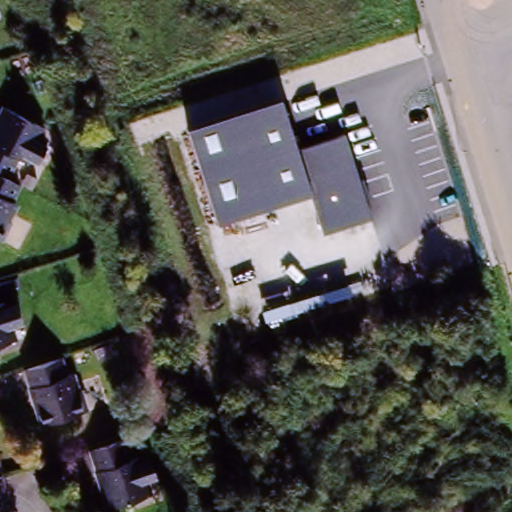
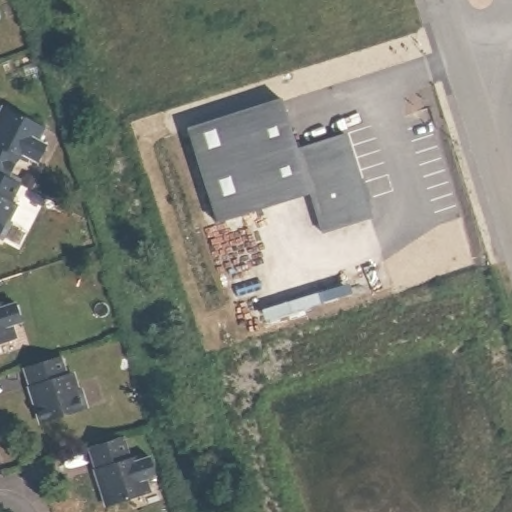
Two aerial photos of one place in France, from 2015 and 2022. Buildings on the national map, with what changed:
unchanged [(282,100),(297,150),(347,133),(373,217),(323,235),(311,196),(217,227),(187,130),(282,100)]
unchanged [(40,127),(35,139),(45,144),(36,162),(25,156),(22,161),(16,157),(6,177),(3,176),(1,175),(0,174),(0,110),(2,106),(40,127)]
unchanged [(15,204),(6,219),(10,222),(0,240),(0,174),(1,175),(3,176),(6,177),(18,184),(10,201),(15,204)]
unchanged [(3,307),(15,302),(21,322),(10,326),(14,339),(0,343),(0,302),(2,302),(3,307)]
unchanged [(66,385),(71,383),(77,400),(81,399),(87,418),(42,433),(36,414),(38,413),(33,397),(30,397),(25,379),(61,367),(66,385)]
unchanged [(130,462),(138,459),(140,463),(150,461),(155,480),(146,483),(150,498),(109,512),(102,492),(105,491),(100,475),(96,476),(90,454),(123,443),(130,462)]

